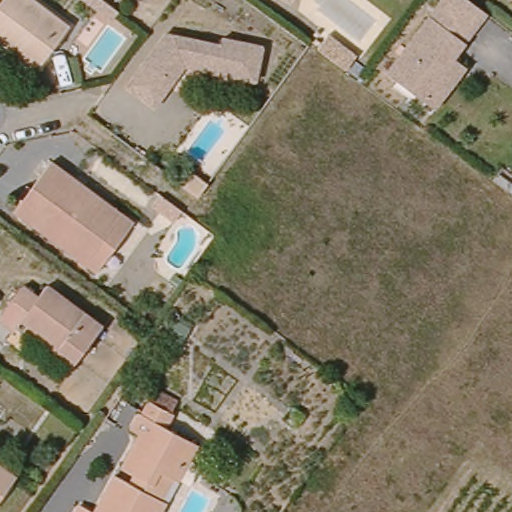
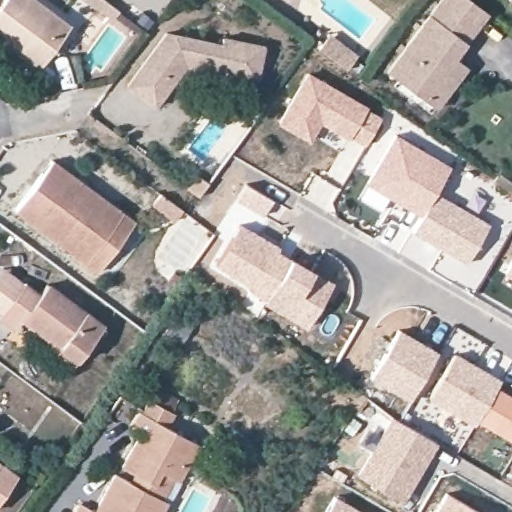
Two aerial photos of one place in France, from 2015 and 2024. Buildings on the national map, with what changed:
unchanged [(37,0),(68,21),(43,56),(36,64),(0,37),(0,0),(37,0)]
unchanged [(392,66),(440,0),(482,0),(491,6),(458,53),(468,60),(438,100),(428,94),(392,66)]
unchanged [(221,31),(261,38),(255,73),(188,62),(176,78),(159,103),(133,84),(171,31),(220,39),(221,31)]
new [(325,43),(354,64),(343,78),(314,57),(325,43)]
new [(306,71),(349,95),(381,116),(363,149),(319,124),(309,141),(276,123),(306,71)]
new [(434,191),(488,223),(464,263),(411,232),(421,215),(364,183),(394,133),(450,165),(434,191)]
unchanged [(52,165),(112,209),(116,212),(110,220),(79,264),(73,259),(75,257),(17,214),(52,165)]
new [(244,183),(271,199),(261,216),(233,201),(244,183)]
unchanged [(188,220),(168,205),(179,189),(199,204),(188,220)]
unchanged [(79,264),(110,220),(116,212),(112,209),(116,203),(133,215),(94,273),(79,264)]
new [(239,222),(279,244),(277,249),(289,255),(261,302),(211,265),(239,222)]
new [(289,255),(334,283),(304,329),(261,302),(289,255)]
new [(512,281),(503,275),(512,258),(512,281)]
unchanged [(48,344),(50,339),(21,317),(13,327),(0,318),(0,314),(22,285),(36,294),(44,284),(101,325),(78,357),(75,362),(48,344)]
new [(397,328),(440,354),(409,402),(368,381),(397,328)]
new [(453,352),(501,379),(497,387),(476,422),(474,426),(426,399),(453,352)]
new [(512,395),(512,443),(476,422),(497,387),(512,395)]
unchanged [(113,478),(133,489),(137,481),(118,469),(138,432),(128,426),(136,407),(198,442),(178,479),(163,472),(153,489),(167,497),(158,512),(94,512),(113,478)]
new [(390,416),(438,443),(401,501),(356,474),(390,416)]
unchanged [(14,476),(0,495),(0,466),(14,476)]
new [(446,491),(481,512),(433,512),(446,491)]
new [(335,494),(365,512),(325,512),(335,494)]
unchanged [(74,504),(88,512),(70,512),(74,504)]

